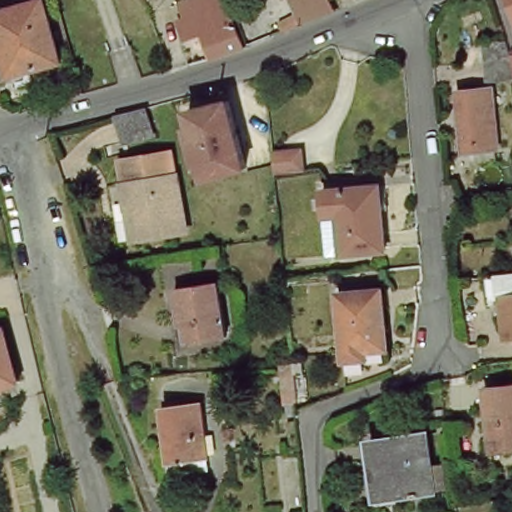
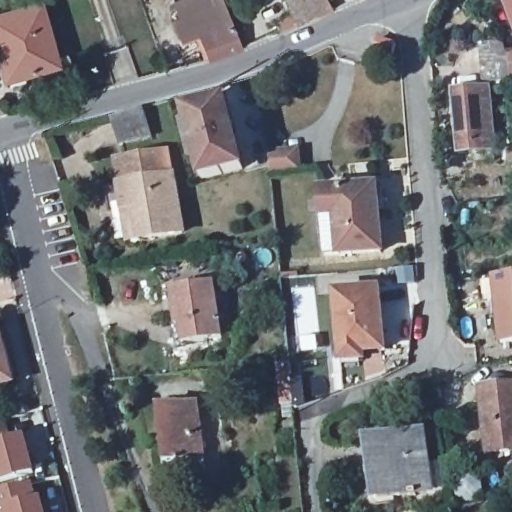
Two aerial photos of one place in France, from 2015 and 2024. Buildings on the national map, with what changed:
unchanged [(0,46),(0,11),(39,0),(57,62),(8,76),(0,46)]
unchanged [(182,14),(175,0),(225,0),(243,43),(211,55),(201,31),(183,37),(175,17),(182,14)]
unchanged [(304,20),(286,27),(282,17),(299,10),(294,0),(336,0),(339,6),(304,20)]
unchanged [(506,0),(512,0),(512,17),(506,0)]
unchanged [(485,84),(481,43),(503,41),(508,56),(512,55),(512,81),(485,84)]
unchanged [(264,73),(270,95),(249,100),(243,78),(264,73)]
unchanged [(455,91),(489,88),(495,150),(461,152),(455,91)]
unchanged [(203,180),(199,163),(195,164),(186,129),(189,128),(185,111),(226,101),(244,169),(203,180)]
unchanged [(142,108),(151,135),(121,144),(112,115),(142,108)]
unchanged [(124,208),(120,184),(122,183),(118,160),(168,151),(172,175),(173,175),(183,232),(141,239),(129,240),(124,208)]
unchanged [(299,151),(301,170),(272,172),(271,154),(299,151)]
unchanged [(332,251),(326,186),(382,181),(388,246),(332,251)]
unchanged [(501,342),(494,276),(512,274),(512,341),(501,342)]
unchanged [(183,343),(181,325),(177,325),(172,290),(215,283),(223,337),(183,343)]
unchanged [(369,351),(363,351),(364,359),(342,361),(337,293),(379,290),(383,337),(385,350),(369,351)]
unchanged [(0,386),(0,333),(13,382),(0,386)]
unchanged [(280,400),(267,400),(263,361),(276,360),(280,400)]
unchanged [(489,452),(482,390),(512,386),(512,450),(489,452)]
unchanged [(207,461),(165,466),(162,442),(166,441),(161,398),(199,394),(207,461)]
new [(16,438),(25,436),(34,474),(0,482),(0,424),(10,421),(16,438)]
unchanged [(432,491),(412,493),(414,510),(404,512),(393,512),(391,496),(377,498),(369,441),(424,433),(432,491)]
new [(0,493),(33,483),(40,501),(43,500),(46,512),(0,512),(0,493)]

